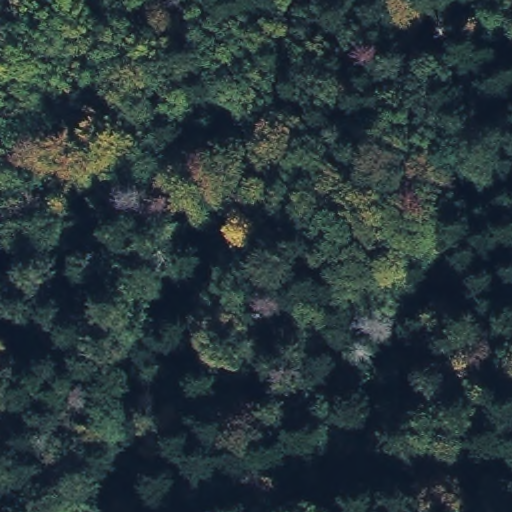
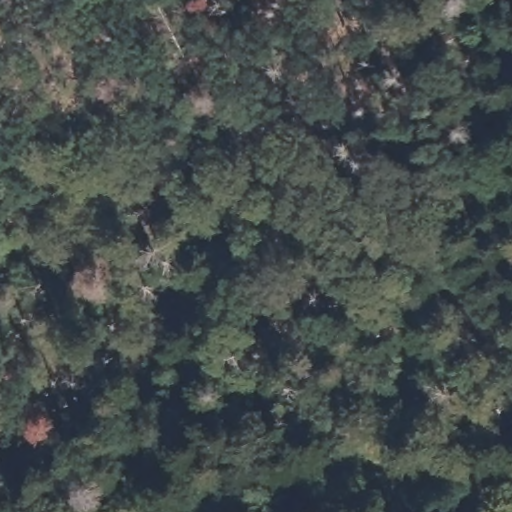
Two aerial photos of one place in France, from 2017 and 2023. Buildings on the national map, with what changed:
[]

